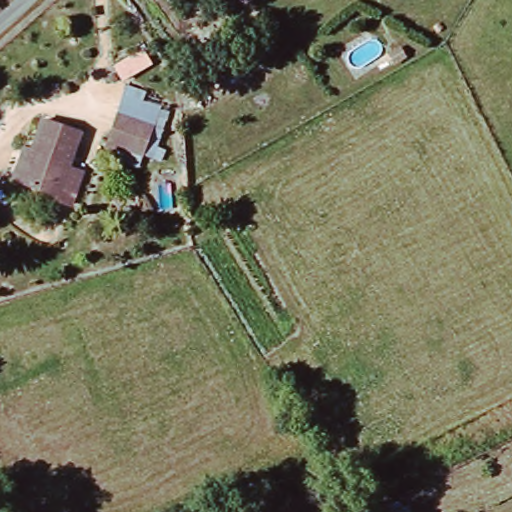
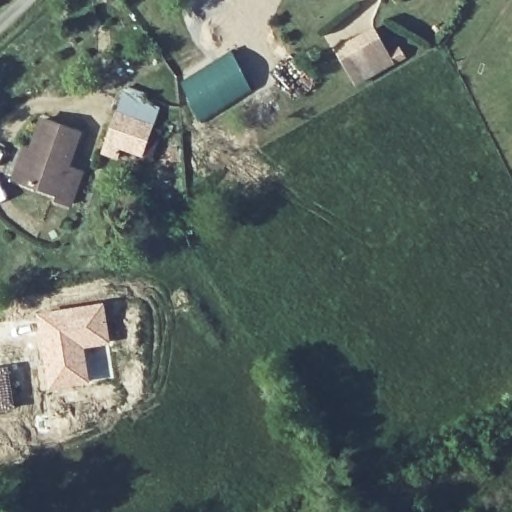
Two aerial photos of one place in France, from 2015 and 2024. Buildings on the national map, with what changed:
new [(390,51),(401,45),(407,56),(355,86),(335,48),(375,25),(390,51)]
new [(230,51),(252,91),(200,125),(178,83),(230,51)]
unchanged [(155,105),(149,130),(168,136),(161,162),(119,151),(116,160),(101,153),(119,97),(155,105)]
unchanged [(30,150),(33,141),(42,119),(67,129),(79,132),(67,167),(80,171),(69,202),(54,197),(56,193),(20,181),(13,179),(24,147),(30,150)]
new [(33,325),(31,312),(104,301),(110,345),(85,349),(90,385),(38,393),(31,325),(33,325)]

